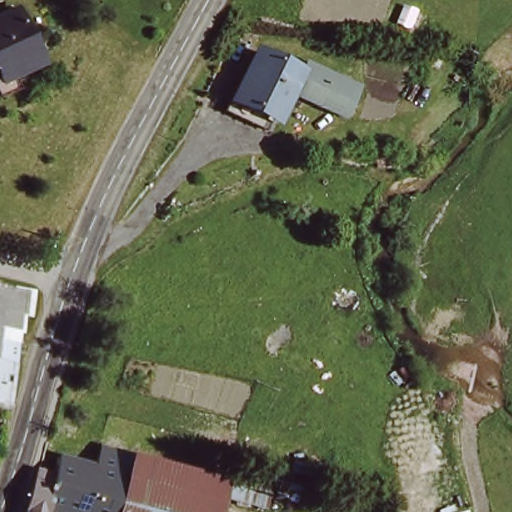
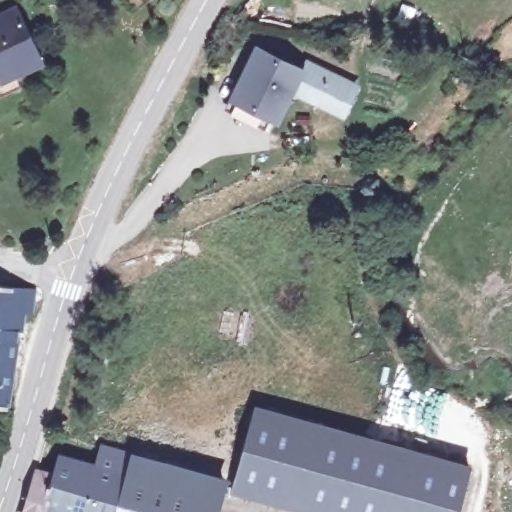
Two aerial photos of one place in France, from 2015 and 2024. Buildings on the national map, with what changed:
unchanged [(41,61),(2,80),(0,80),(0,16),(16,9),(41,61)]
unchanged [(237,102),(262,57),(301,77),(306,66),(357,95),(344,121),(292,92),(276,124),(237,102)]
unchanged [(0,408),(0,285),(2,285),(12,287),(34,290),(32,312),(20,311),(19,323),(6,408),(0,408)]
new [(458,512),(306,512),(256,498),(259,490),(232,482),(255,405),(471,464),(458,512)]
unchanged [(47,473),(60,476),(66,457),(103,467),(108,447),(259,490),(255,503),(228,495),(222,512),(60,512),(50,509),(49,512),(25,512),(39,471),(47,473)]

